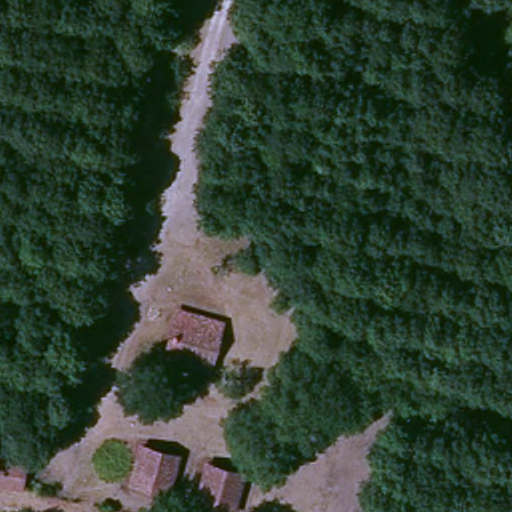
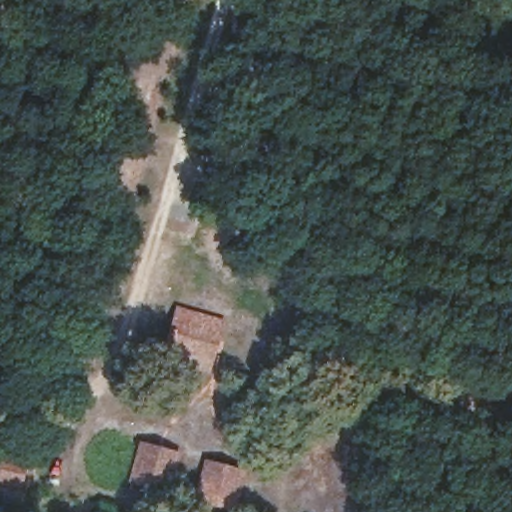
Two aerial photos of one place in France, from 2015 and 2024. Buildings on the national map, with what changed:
unchanged [(223,322),(215,370),(168,360),(179,314),(223,322)]
unchanged [(176,490),(130,483),(143,440),(185,447),(176,490)]
unchanged [(31,484),(0,479),(0,465),(5,451),(38,458),(31,484)]
unchanged [(229,512),(196,505),(204,458),(247,469),(240,512),(229,512)]

